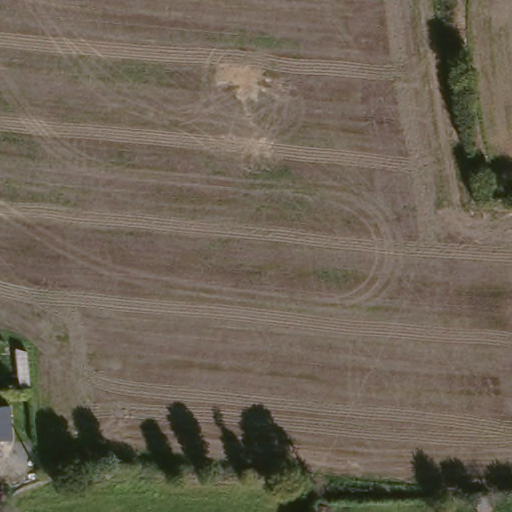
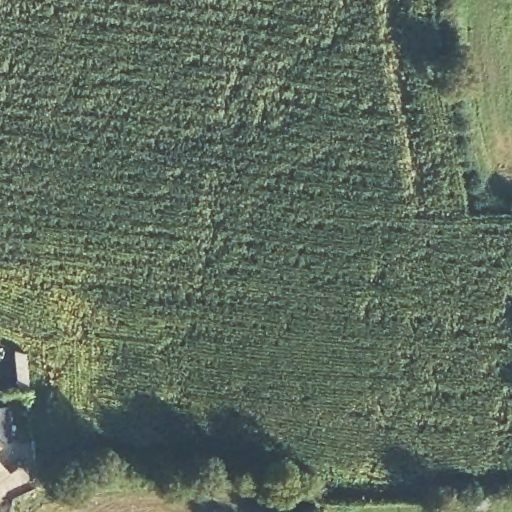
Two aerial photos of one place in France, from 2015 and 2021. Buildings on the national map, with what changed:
unchanged [(15,399),(19,398),(22,433),(2,435),(3,448),(3,449),(0,449),(0,400),(15,399)]

